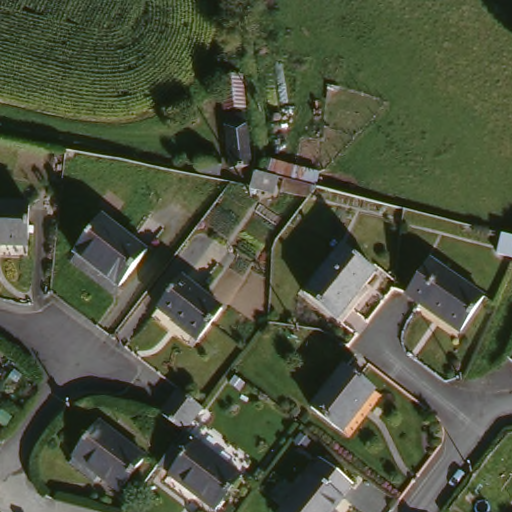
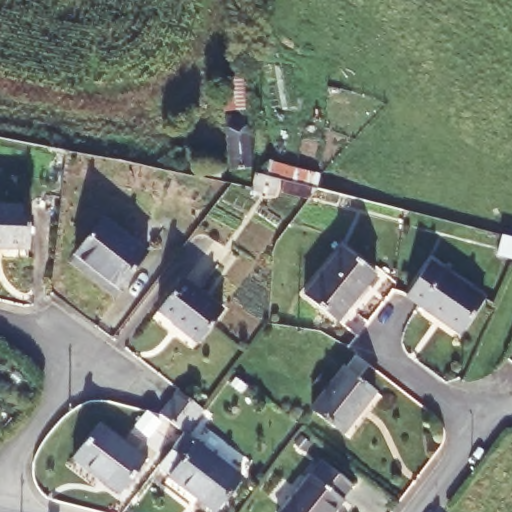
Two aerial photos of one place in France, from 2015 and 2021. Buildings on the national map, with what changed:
unchanged [(217,84),(237,82),(237,85),(239,108),(220,110),(217,84)]
unchanged [(247,172),(226,171),(226,170),(223,118),(236,117),(238,124),(248,124),(251,172),(247,172)]
unchanged [(216,169),(214,181),(194,178),(197,158),(217,161),(216,169)]
unchanged [(323,177),(315,206),(279,197),(281,183),(265,180),(269,163),(323,177)]
unchanged [(0,249),(0,208),(22,208),(22,249),(0,249)]
unchanged [(110,295),(67,261),(97,225),(140,259),(110,295)]
unchanged [(505,277),(486,271),(491,252),(511,257),(505,277)]
unchanged [(333,323),(304,300),(336,259),(366,281),(333,323)]
unchanged [(403,298),(426,265),(479,302),(456,334),(403,298)]
unchanged [(194,346),(155,315),(180,284),(220,315),(194,346)]
unchanged [(335,436),(306,412),(338,373),(368,397),(335,436)]
unchanged [(285,392),(276,385),(286,374),(295,380),(285,392)]
unchanged [(160,421),(170,408),(166,406),(176,393),(179,396),(199,411),(201,412),(191,424),(181,437),(160,421)]
unchanged [(110,497),(67,464),(96,428),(138,460),(110,497)]
unchanged [(207,510),(165,475),(192,443),(234,477),(207,510)]
unchanged [(279,512),(317,468),(349,495),(334,512),(279,512)]

